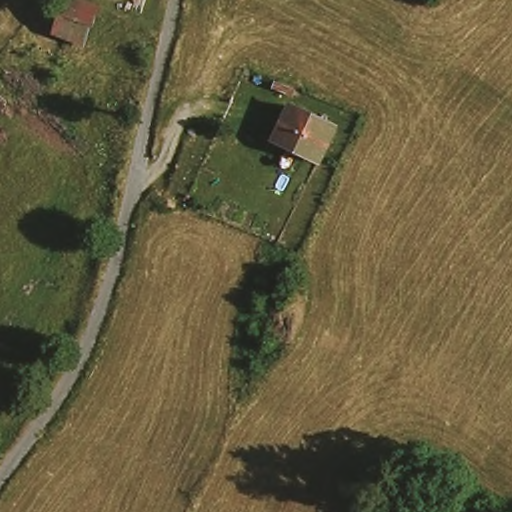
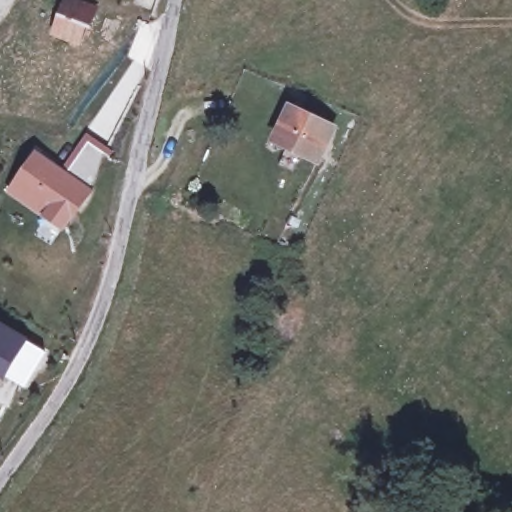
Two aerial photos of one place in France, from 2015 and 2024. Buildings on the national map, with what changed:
unchanged [(72,0),(75,0),(102,10),(88,48),(59,38),(72,0)]
unchanged [(279,136),(294,102),(337,122),(322,156),(279,136)]
new [(42,155),(68,174),(92,141),(107,152),(97,180),(90,191),(70,220),(65,225),(17,189),(20,183),(42,155)]
new [(8,376),(5,381),(0,378),(0,321),(30,340),(29,342),(46,353),(25,386),(8,376)]

